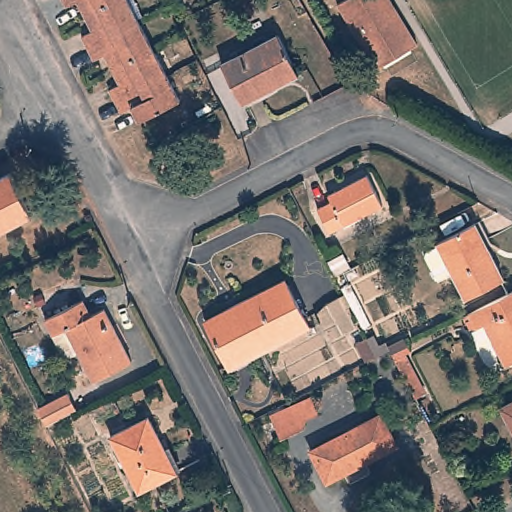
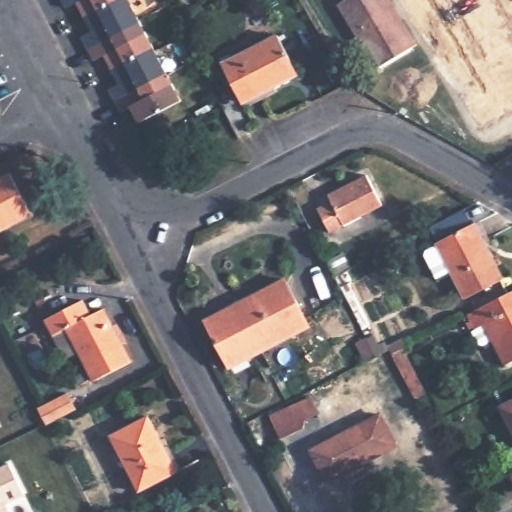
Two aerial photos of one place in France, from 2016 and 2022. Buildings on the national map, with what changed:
unchanged [(76,6),(63,12),(57,0),(122,0),(83,20),(76,6)]
unchanged [(78,42),(90,35),(83,20),(122,0),(125,0),(139,25),(84,52),(78,42)]
unchanged [(377,83),(328,1),(330,0),(396,0),(428,54),(377,83)]
unchanged [(110,71),(103,59),(90,64),(84,52),(139,25),(152,52),(110,71)]
unchanged [(299,76),(276,89),(275,86),(244,102),(224,65),(279,37),(299,76)]
unchanged [(110,103),(105,94),(119,89),(110,71),(152,52),(165,77),(110,103)]
unchanged [(137,123),(128,111),(115,115),(110,103),(165,77),(178,102),(137,123)]
unchanged [(31,214),(0,231),(0,176),(9,172),(31,214)]
unchanged [(386,209),(332,237),(320,213),(336,205),(332,197),(370,177),(386,209)]
unchanged [(477,225),(506,277),(470,297),(441,244),(477,225)]
unchanged [(211,337),(204,323),(283,281),(290,296),(211,337)]
unchanged [(485,351),(475,332),(481,330),(473,313),(512,293),(512,360),(501,343),(485,351)]
unchanged [(307,331),(230,372),(211,337),(290,296),(307,331)]
unchanged [(92,380),(66,330),(55,336),(46,316),(81,298),(91,317),(107,308),(131,360),(92,380)]
unchanged [(34,412),(64,397),(72,413),(42,429),(34,412)]
unchanged [(512,405),(512,435),(500,411),(512,405)]
unchanged [(298,433),(280,444),(267,423),(297,407),(304,420),(294,426),(298,433)]
unchanged [(178,472),(140,492),(110,436),(149,416),(178,472)]
unchanged [(320,455),(331,448),(380,423),(393,448),(331,481),(320,455)]
new [(9,463),(24,497),(6,505),(10,512),(0,512),(0,467),(9,463)]

